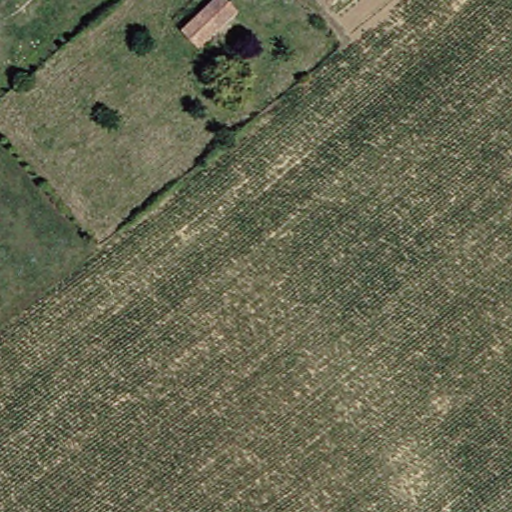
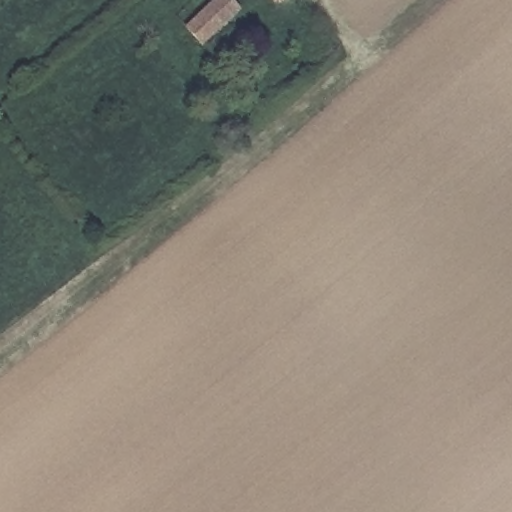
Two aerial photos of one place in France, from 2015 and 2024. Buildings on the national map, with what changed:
unchanged [(185,31),(213,0),(227,0),(235,7),(200,45),(185,31)]

